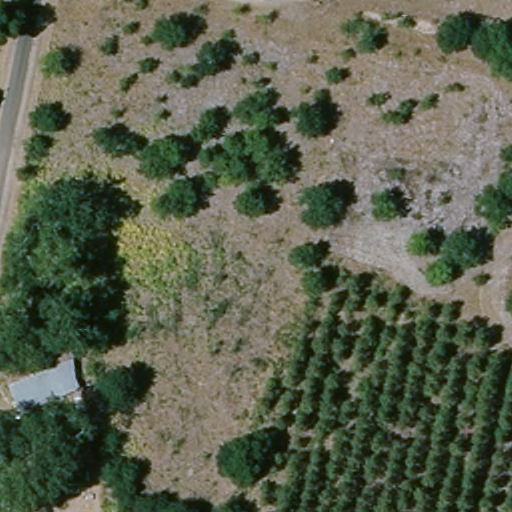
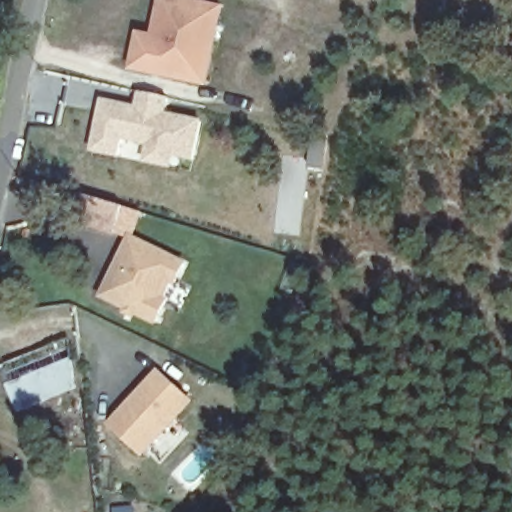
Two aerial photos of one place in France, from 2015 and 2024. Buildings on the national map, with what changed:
new [(130,67),(138,28),(153,31),(160,0),(212,0),(225,2),(209,84),(130,67)]
new [(124,142),(120,160),(92,154),(103,101),(138,107),(141,94),(169,99),(167,115),(204,121),(194,161),(174,159),(172,170),(145,166),(147,147),(124,142)]
new [(71,223),(79,195),(122,208),(114,237),(71,223)]
new [(100,298),(131,235),(188,262),(156,326),(100,298)]
new [(22,411),(3,367),(69,340),(79,388),(22,411)]
demolished [(51,356),(62,379),(27,395),(16,370),(51,356)]
new [(108,425),(159,370),(195,402),(144,458),(108,425)]

